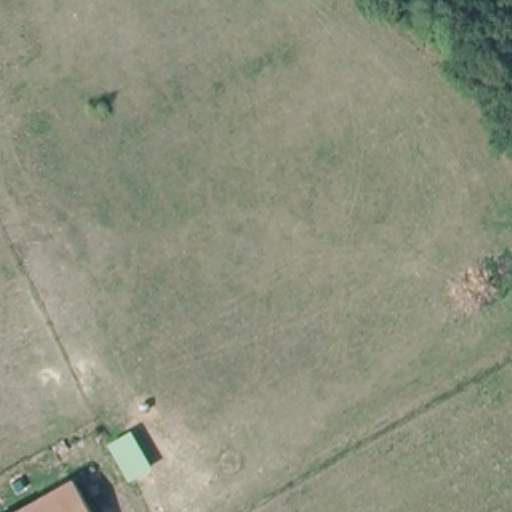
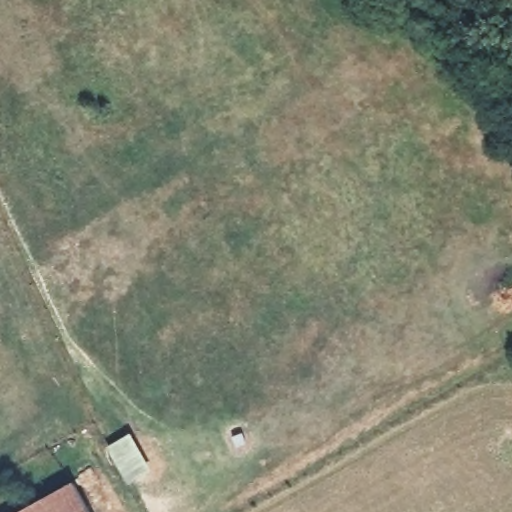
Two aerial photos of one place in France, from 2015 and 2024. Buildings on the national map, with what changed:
unchanged [(82,512),(18,512),(66,486),(82,512)]

